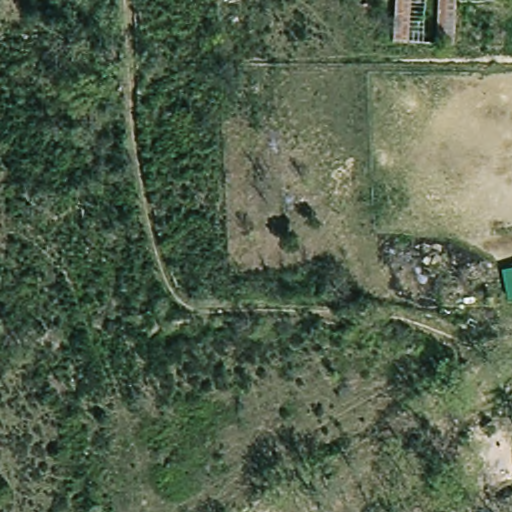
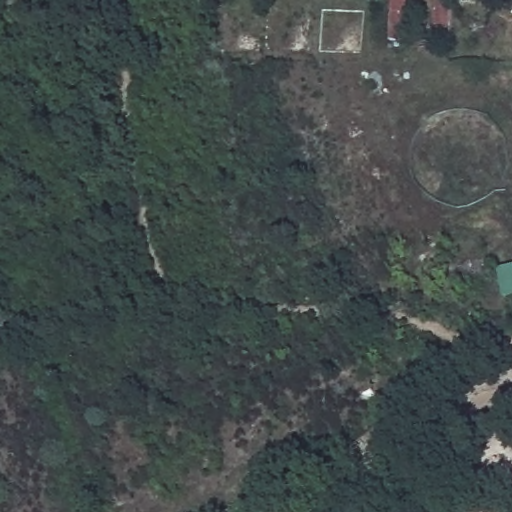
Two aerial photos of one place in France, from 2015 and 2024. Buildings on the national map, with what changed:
unchanged [(454,0),(454,42),(394,44),(395,0),(454,0)]

